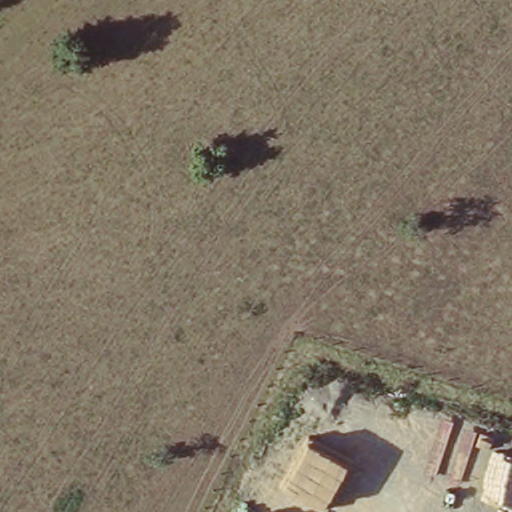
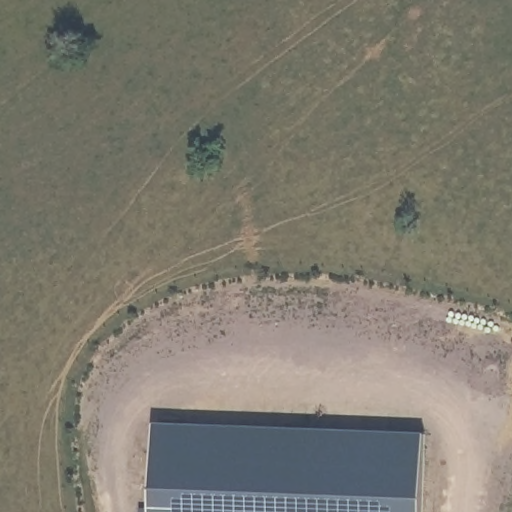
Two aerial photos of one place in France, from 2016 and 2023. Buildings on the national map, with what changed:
new [(421,512),(151,512),(155,420),(425,430),(421,512)]

